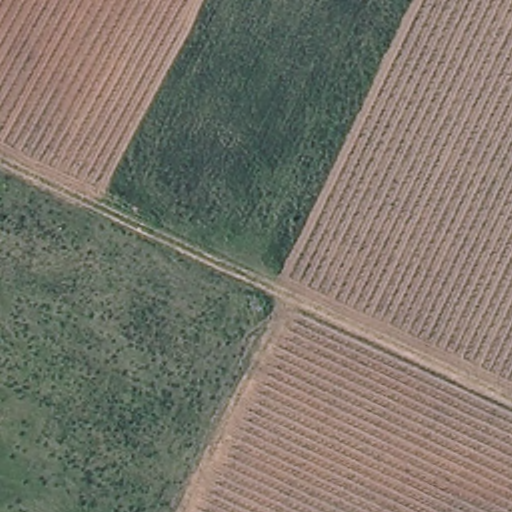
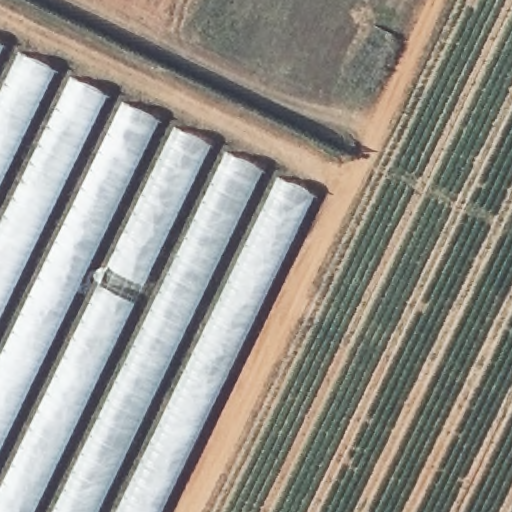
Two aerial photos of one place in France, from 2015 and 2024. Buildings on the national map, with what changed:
new [(158,512),(0,512),(0,43),(311,193),(158,512)]

